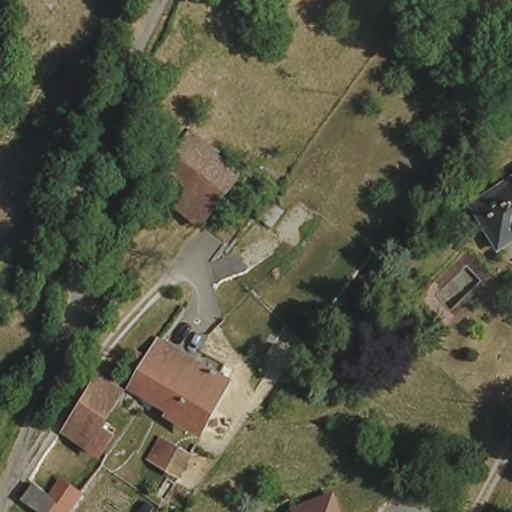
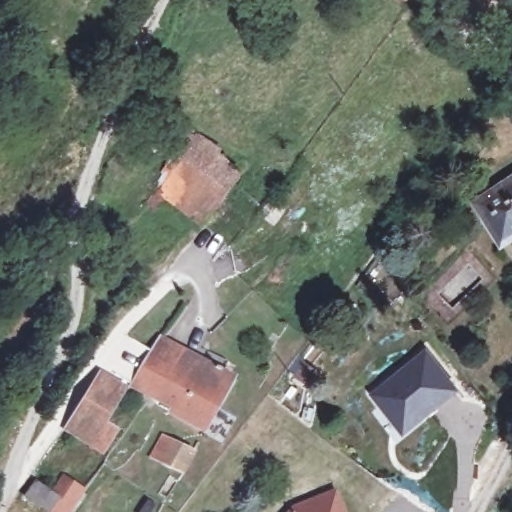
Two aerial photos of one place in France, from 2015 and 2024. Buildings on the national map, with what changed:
unchanged [(223,156),(219,160),(241,177),(206,225),(156,188),(194,135),(223,156)]
unchanged [(508,251),(476,205),(512,180),(512,248),(508,251)]
unchanged [(146,377),(130,368),(143,350),(158,359),(162,352),(169,341),(194,356),(209,365),(213,361),(233,372),(231,376),(241,383),(213,431),(158,397),(139,386),(146,377)]
new [(426,348),(461,390),(403,436),(369,395),(426,348)]
unchanged [(113,422),(127,432),(111,456),(80,435),(92,416),(88,412),(110,378),(133,392),(113,422)]
unchanged [(175,471),(143,452),(156,432),(186,450),(175,471)]
unchanged [(52,486),(60,474),(79,486),(62,512),(56,512),(23,487),(33,473),(52,486)]
unchanged [(326,488),(336,512),(280,512),(286,505),(326,488)]

